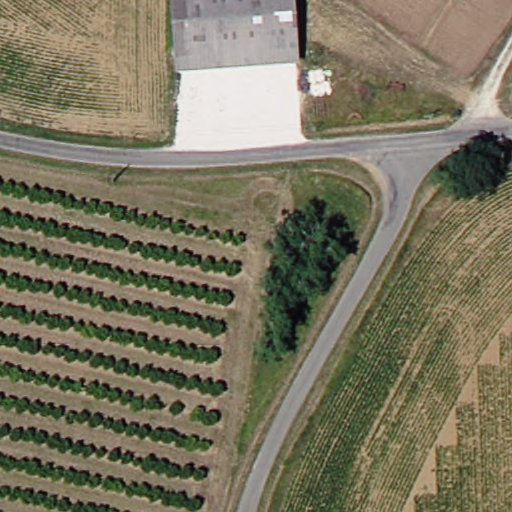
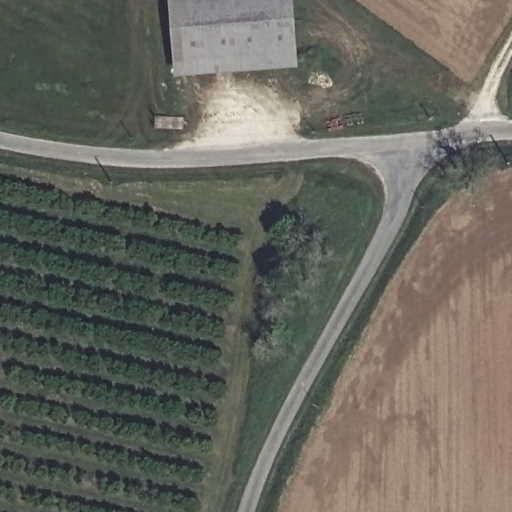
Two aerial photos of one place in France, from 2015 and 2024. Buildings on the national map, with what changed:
unchanged [(171,0),(289,0),(292,73),(173,76),(171,0)]

